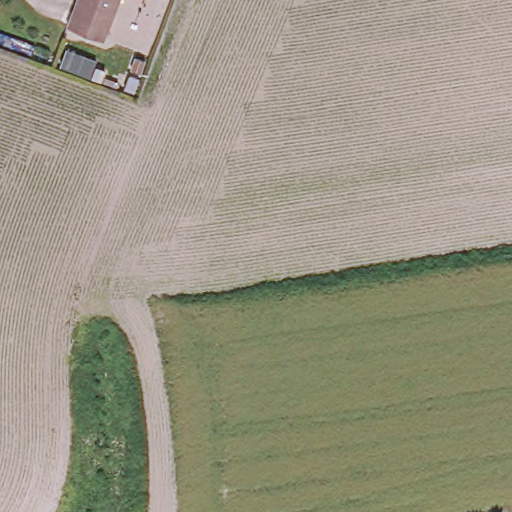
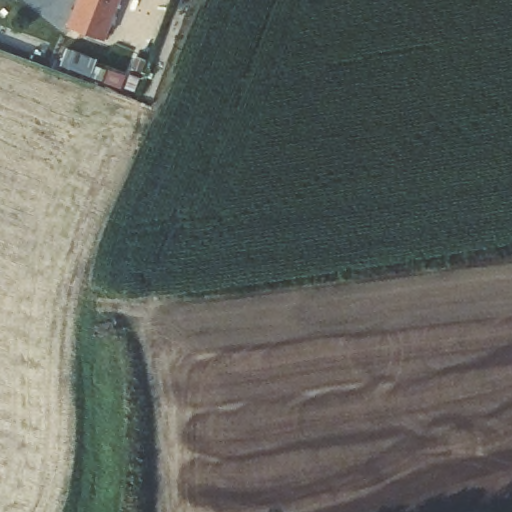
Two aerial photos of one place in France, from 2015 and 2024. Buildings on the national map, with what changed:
unchanged [(67,21),(75,0),(118,0),(105,34),(67,21)]

